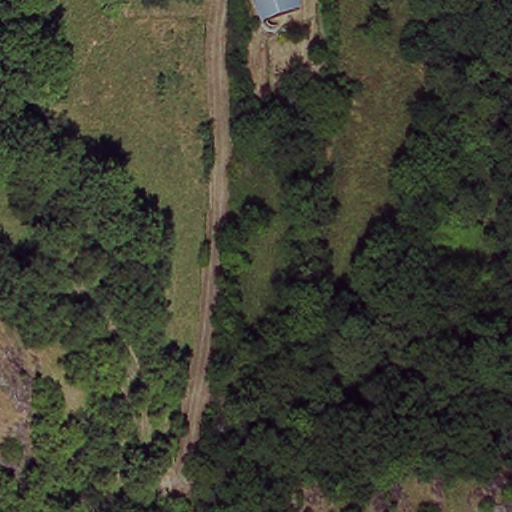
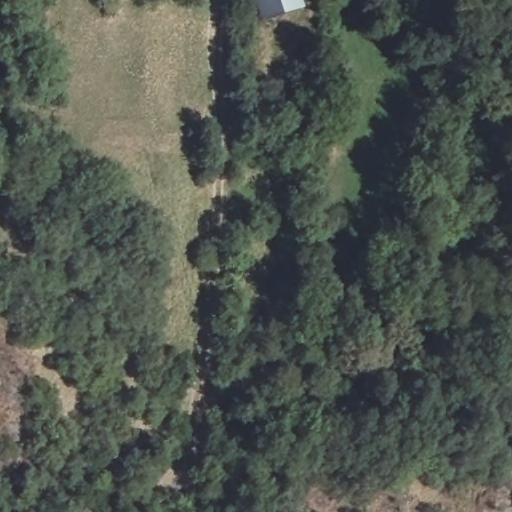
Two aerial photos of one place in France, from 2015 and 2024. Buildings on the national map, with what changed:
unchanged [(257,4),(257,0),(292,0),(292,4),(257,4)]

